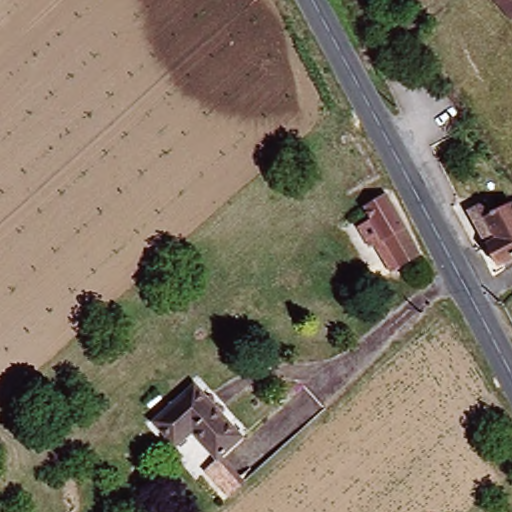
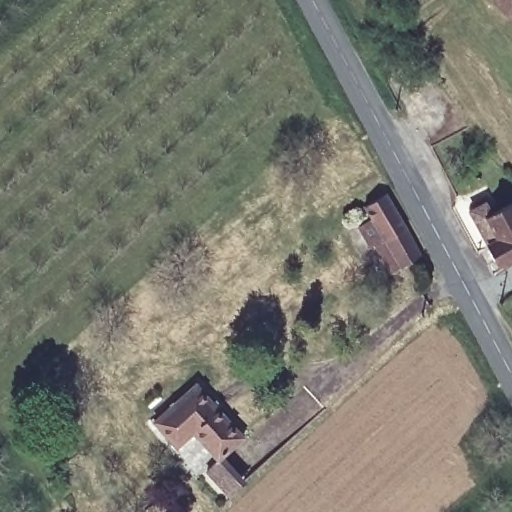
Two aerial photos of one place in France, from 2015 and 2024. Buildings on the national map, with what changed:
unchanged [(503,0),(512,0),(512,11),(503,0)]
unchanged [(362,196),(384,179),(404,217),(383,229),(362,196)]
unchanged [(512,202),(512,258),(498,266),(470,216),(468,210),(486,202),(488,206),(492,213),(512,202)]
unchanged [(246,433),(225,454),(197,425),(181,441),(163,421),(201,386),(246,433)]
unchanged [(208,470),(225,454),(251,480),(234,496),(208,470)]

